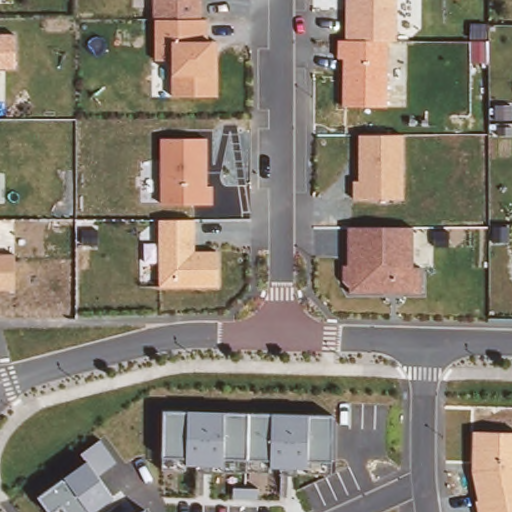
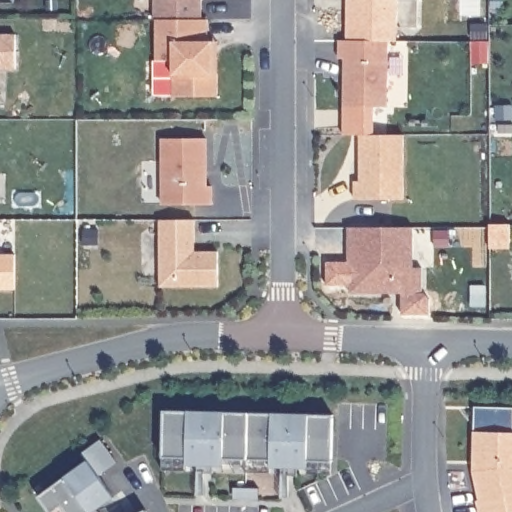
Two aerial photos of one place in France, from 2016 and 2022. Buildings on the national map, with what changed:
unchanged [(202,19),(209,20),(209,40),(217,40),(217,95),(174,95),(174,62),(155,62),(154,0),(202,0),(202,19)]
unchanged [(343,107),(344,60),(338,59),(337,40),(346,39),(346,0),(398,0),(397,42),(387,42),(387,106),(343,107)]
unchanged [(16,34),(16,70),(0,70),(0,34),(16,34)]
unchanged [(353,199),(353,181),(360,181),(361,135),(405,135),(403,199),(353,199)]
unchanged [(207,138),(207,187),(213,187),(212,204),(162,203),(160,139),(207,138)]
unchanged [(195,220),(195,250),(220,250),(220,286),(160,286),(159,220),(195,220)]
unchanged [(351,294),(351,287),(344,281),(343,264),(348,264),(349,226),(413,227),(414,268),(422,268),(422,294),(351,294)]
unchanged [(0,290),(0,254),(15,254),(15,290),(0,290)]
unchanged [(332,460),(331,476),(162,471),(164,457),(166,410),(335,415),(332,460)]
unchanged [(480,499),(473,470),(476,432),(512,433),(512,512),(479,512),(477,501),(480,499)]
unchanged [(80,454),(101,439),(117,462),(99,476),(114,498),(91,512),(51,512),(40,497),(86,461),(80,454)]

